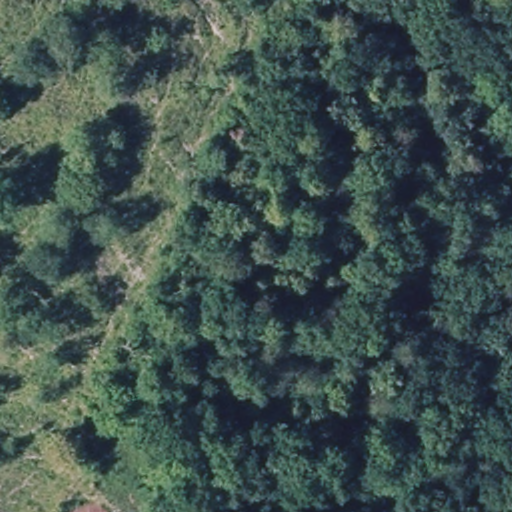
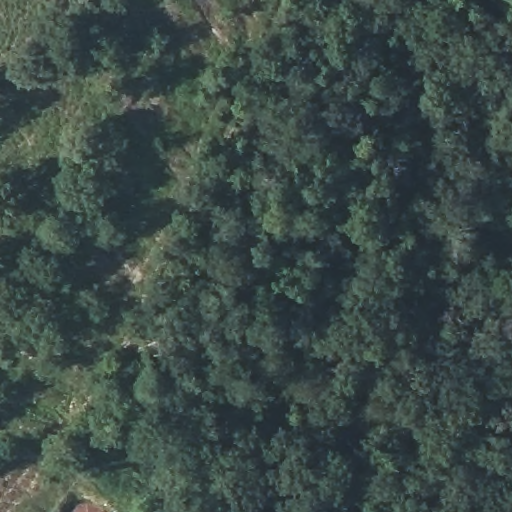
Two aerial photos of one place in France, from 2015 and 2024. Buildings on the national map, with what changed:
unchanged [(96,512),(81,512),(89,504),(96,512)]

